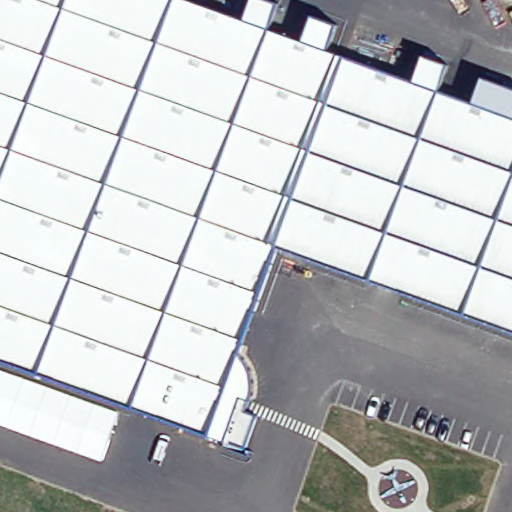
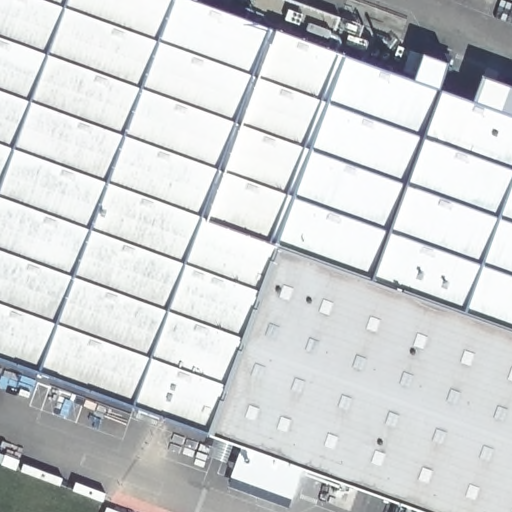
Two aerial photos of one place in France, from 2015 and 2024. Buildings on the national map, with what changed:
unchanged [(238,352),(244,359),(248,371),(251,383),(247,397),(239,395),(224,443),(0,360),(0,0),(185,0),(341,56),(277,244),(238,352)]
unchanged [(341,56),(512,116),(512,329),(277,244),(341,56)]
new [(247,397),(251,383),(248,371),(244,359),(238,352),(277,244),(512,329),(512,512),(416,512),(224,443),(239,395),(247,397)]

